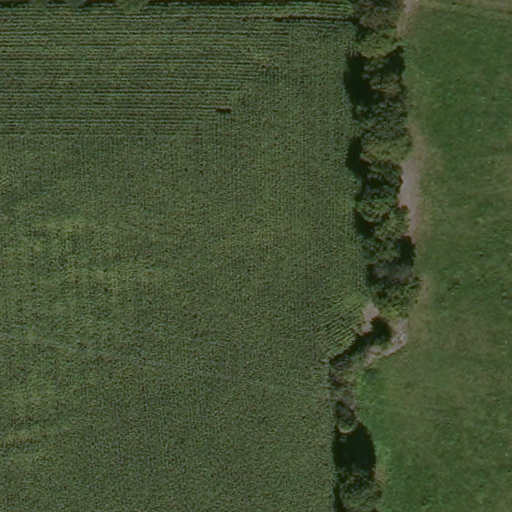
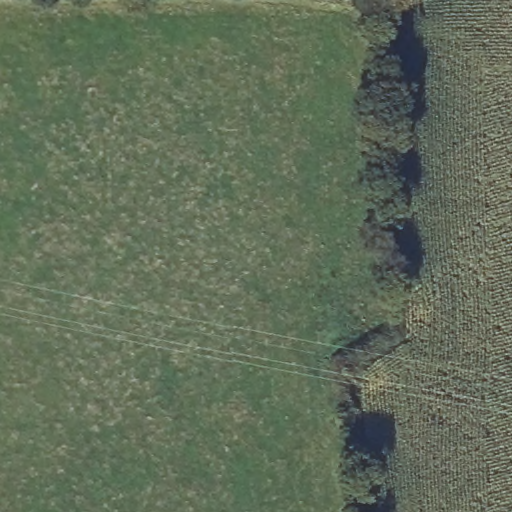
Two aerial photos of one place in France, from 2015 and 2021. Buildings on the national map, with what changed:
[]

